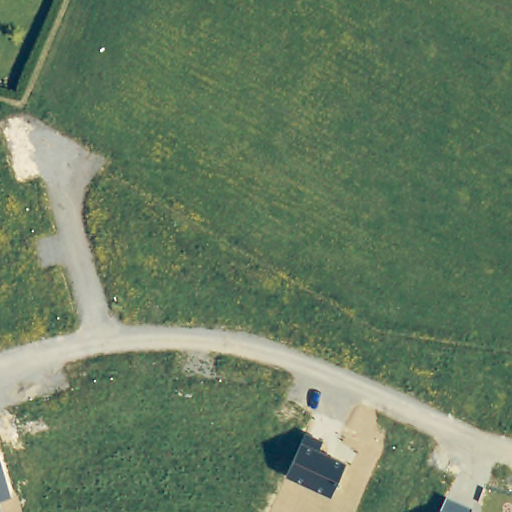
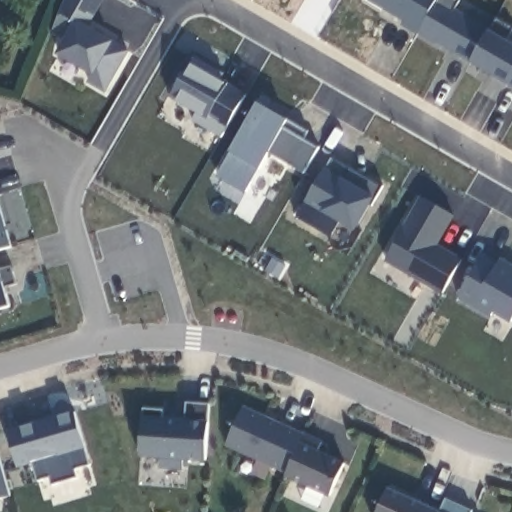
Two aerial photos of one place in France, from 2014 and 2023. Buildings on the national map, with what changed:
new [(91,27),(117,42),(132,50),(107,94),(88,82),(92,73),(57,54),(65,39),(51,33),(65,0),(106,0),(91,27)]
new [(420,33),(437,0),(461,0),(455,9),(491,29),(498,17),(512,26),(512,33),(509,40),(512,42),(512,84),(473,62),(420,33)]
new [(305,171),(271,150),(260,169),(246,193),(213,175),(227,152),(233,144),(193,120),(197,114),(170,96),(193,60),(257,101),(289,118),(283,127),(319,148),(305,171)]
new [(377,197),(357,231),(342,222),(331,239),(294,217),(330,156),(381,186),(377,197)]
new [(440,243),(465,259),(445,296),(384,261),(419,198),(455,217),(440,243)]
new [(13,248),(0,251),(0,207),(13,248)]
new [(500,258),(512,264),(512,323),(496,314),(493,320),(461,301),(486,254),(498,262),(500,258)]
new [(0,269),(13,265),(17,283),(6,287),(11,306),(0,309),(0,269)]
new [(143,408),(163,408),(163,417),(187,419),(188,403),(210,404),(205,459),(183,459),(182,468),(160,467),(159,457),(142,457),(143,408)]
new [(245,407),(307,434),(289,472),(226,444),(245,407)]
new [(73,470),(77,478),(52,483),(49,476),(37,479),(32,464),(17,468),(5,429),(75,408),(91,464),(73,470)]
unchanged [(307,434),(322,440),(317,449),(346,462),(330,496),(287,476),(307,434)]
unchanged [(11,496),(0,498),(0,459),(11,496)]
unchanged [(439,512),(379,512),(388,490),(439,512)]
unchanged [(471,510),(470,512),(440,512),(446,500),(471,510)]

